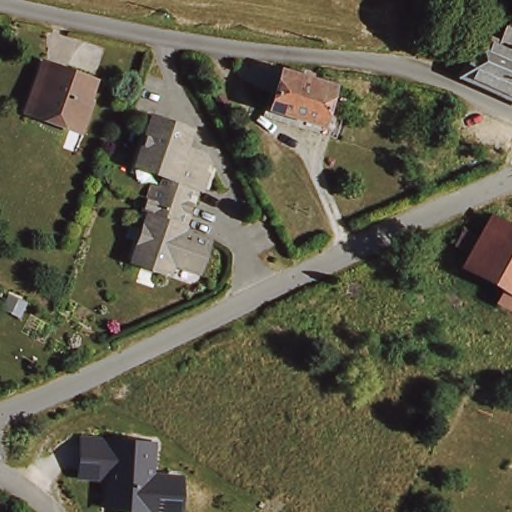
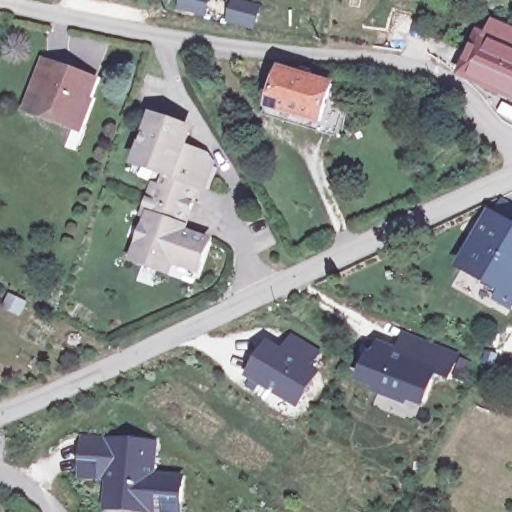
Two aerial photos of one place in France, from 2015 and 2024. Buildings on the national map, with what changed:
unchanged [(465,79),(483,33),(504,41),(512,20),(512,97),(465,79)]
unchanged [(275,66),(296,71),(297,64),(307,66),(306,73),(329,78),(325,91),(324,93),(324,97),(326,100),(330,100),(325,120),(267,105),(275,66)]
unchanged [(36,97),(44,71),(63,77),(65,73),(94,83),(89,102),(92,104),(85,128),(71,124),(68,131),(62,129),(60,133),(32,123),(33,119),(29,117),(36,97)]
unchanged [(342,96),(329,135),(265,119),(267,105),(325,120),(330,100),(326,100),(324,97),(324,93),(325,91),(342,96)]
unchanged [(155,224),(151,222),(161,194),(167,196),(173,180),(145,171),(155,149),(161,125),(162,121),(178,127),(176,133),(197,141),(192,156),(221,167),(212,195),(206,194),(190,240),(214,250),(204,277),(179,268),(176,277),(141,264),(155,224)]
unchanged [(475,271),(502,223),(512,228),(512,291),(475,271)]
unchanged [(0,306),(0,292),(14,300),(9,310),(0,306)]
unchanged [(507,307),(512,298),(512,309),(507,307)]
new [(323,352),(312,368),(322,374),(299,411),(246,378),(271,342),(282,348),(290,333),(323,352)]
new [(397,349),(404,334),(461,356),(451,380),(437,375),(425,409),(409,403),(407,408),(375,396),(376,391),(358,383),(376,339),(397,349)]
unchanged [(153,511),(111,508),(112,478),(98,477),(101,440),(115,441),(157,444),(156,476),(185,478),(184,501),(180,501),(179,512),(166,512),(153,511)]

